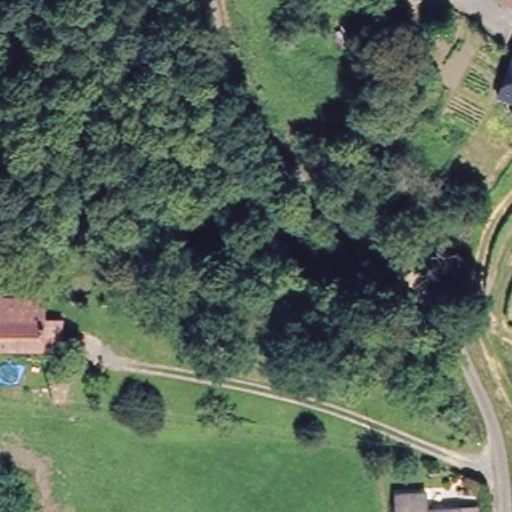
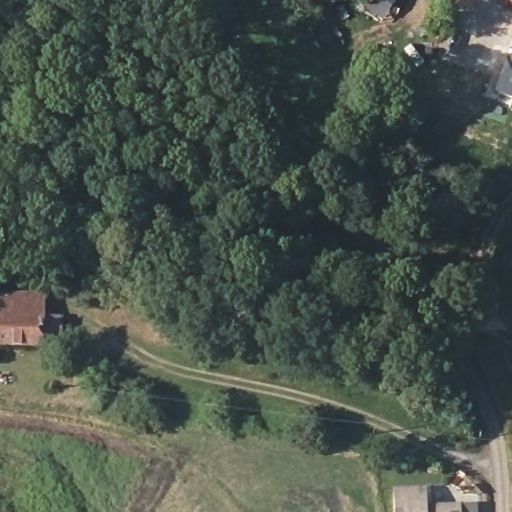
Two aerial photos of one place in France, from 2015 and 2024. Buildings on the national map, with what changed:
unchanged [(512,0),(512,18),(496,0),(512,0)]
unchanged [(503,95),(486,89),(508,39),(512,34),(512,112),(499,106),(503,95)]
unchanged [(58,348),(0,345),(0,315),(35,317),(35,320),(60,323),(58,348)]
unchanged [(472,512),(395,512),(395,495),(420,494),(420,507),(456,505),(471,505),(472,512)]

